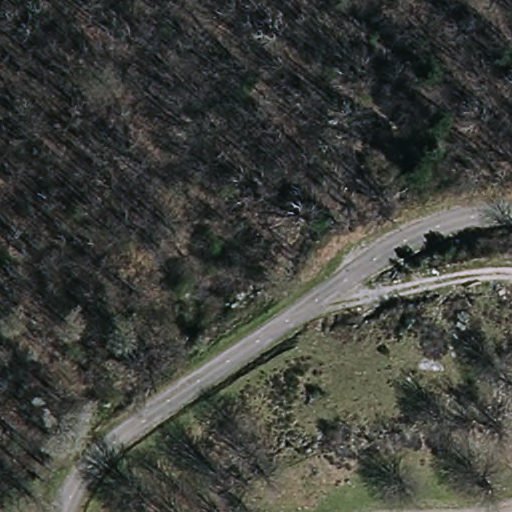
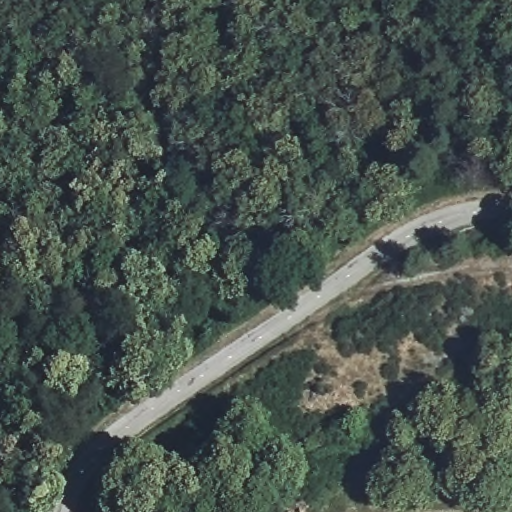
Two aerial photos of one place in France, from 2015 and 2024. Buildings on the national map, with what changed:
[]

